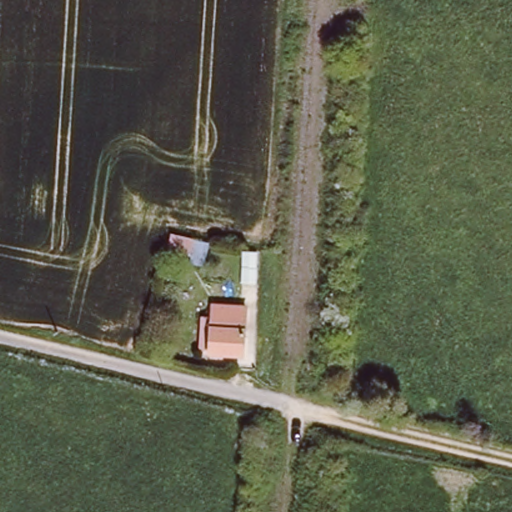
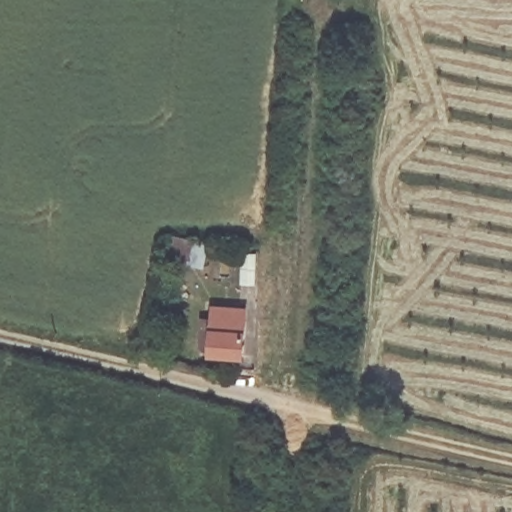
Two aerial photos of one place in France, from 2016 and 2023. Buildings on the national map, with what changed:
unchanged [(205,317),(215,317),(215,310),(245,310),(246,354),(214,355),(214,347),(205,347),(205,317)]

